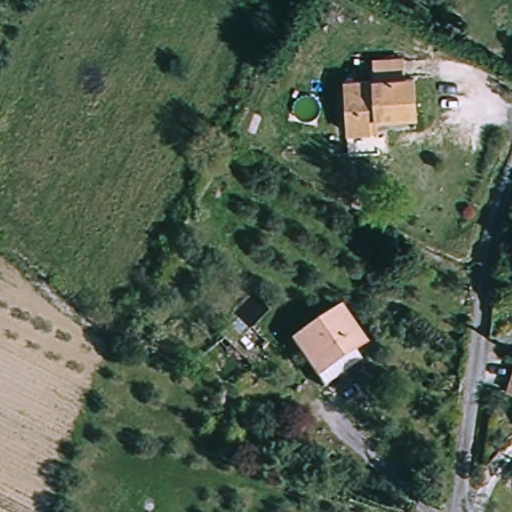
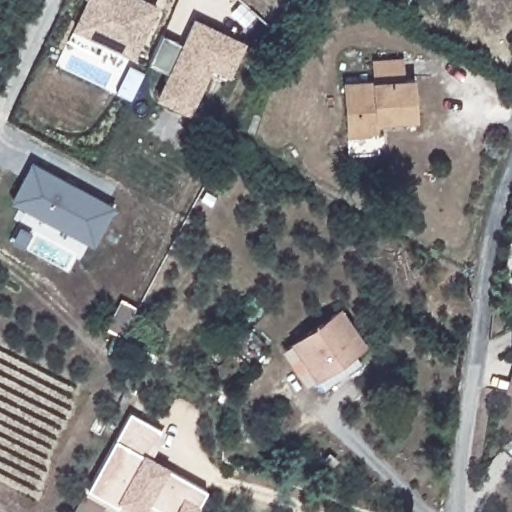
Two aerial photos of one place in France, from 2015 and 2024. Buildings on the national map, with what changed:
new [(133,59),(71,29),(85,0),(149,0),(160,5),(133,59)]
new [(190,115),(155,99),(168,72),(149,62),(162,35),(182,44),(195,19),(247,44),(230,79),(212,70),(190,115)]
unchanged [(370,131),(346,131),(346,78),(372,78),(372,61),(407,61),(407,77),(416,77),(416,111),(383,112),(382,131),(370,131)]
new [(10,200),(32,160),(117,206),(94,245),(10,200)]
unchanged [(330,389),(323,379),(297,342),(346,308),(372,345),(362,352),(369,362),(330,389)]
unchanged [(512,387),(512,396),(510,395),(512,387)]
new [(85,492),(88,486),(115,438),(130,411),(166,432),(151,455),(169,466),(169,467),(207,490),(200,505),(196,512),(120,512),(85,492)]

